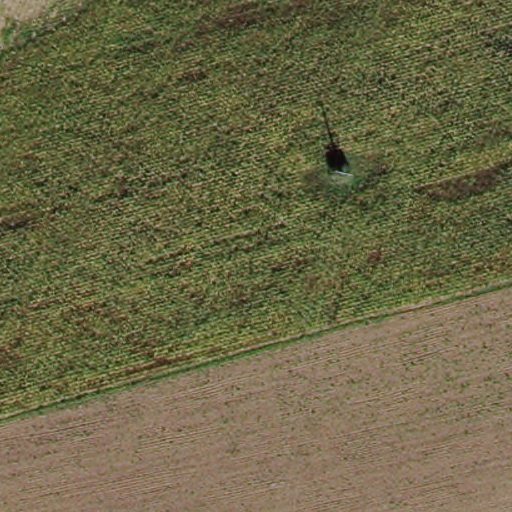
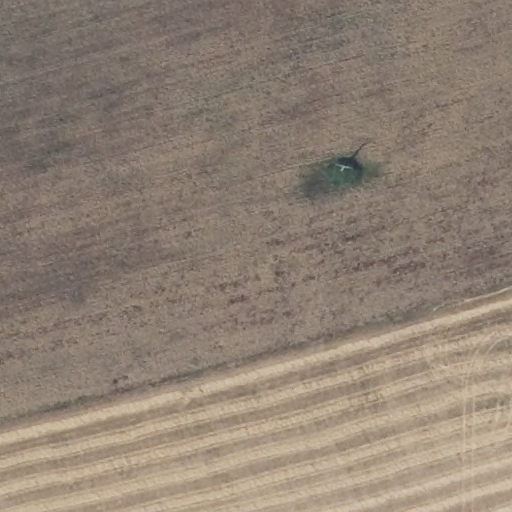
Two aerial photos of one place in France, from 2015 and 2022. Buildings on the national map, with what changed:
[]

